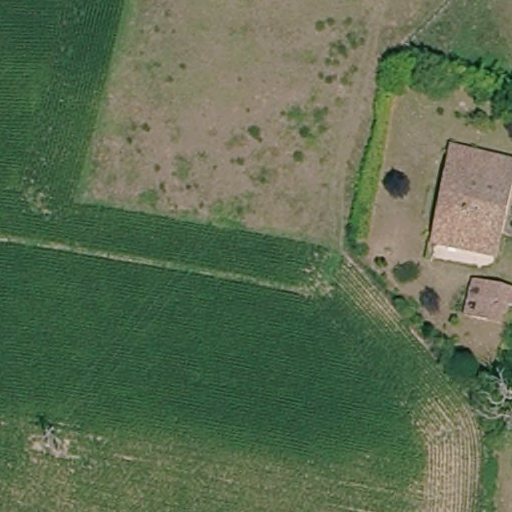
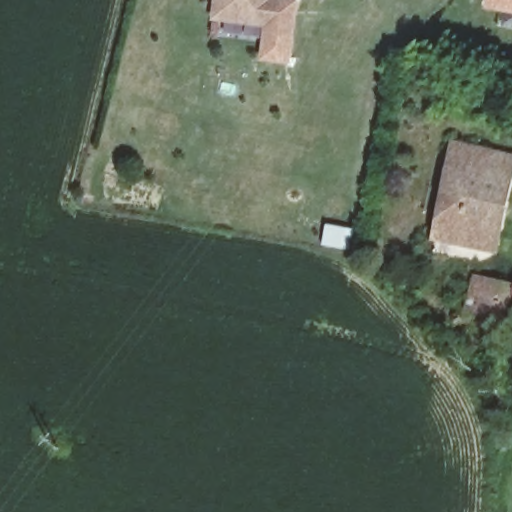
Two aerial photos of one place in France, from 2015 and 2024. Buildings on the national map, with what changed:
new [(270,0),(267,27),(212,19),(215,0),(270,0)]
new [(258,61),(262,26),(267,27),(271,0),(299,0),(292,65),(258,61)]
new [(486,0),(512,0),(512,15),(484,9),(486,0)]
unchanged [(453,223),(446,221),(456,153),(511,163),(495,246),(451,234),(453,223)]
unchanged [(488,296),(487,302),(478,300),(480,275),(510,277),(509,298),(488,296)]

